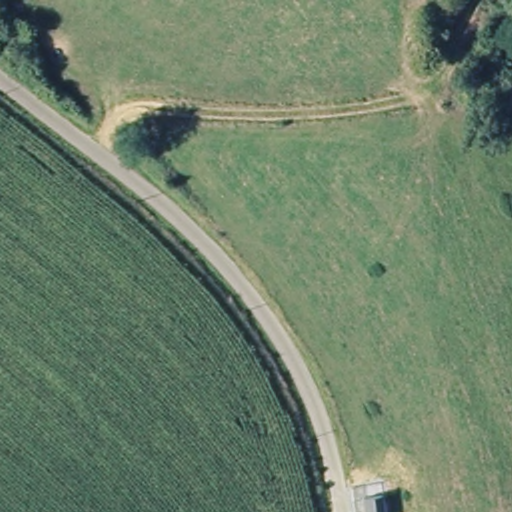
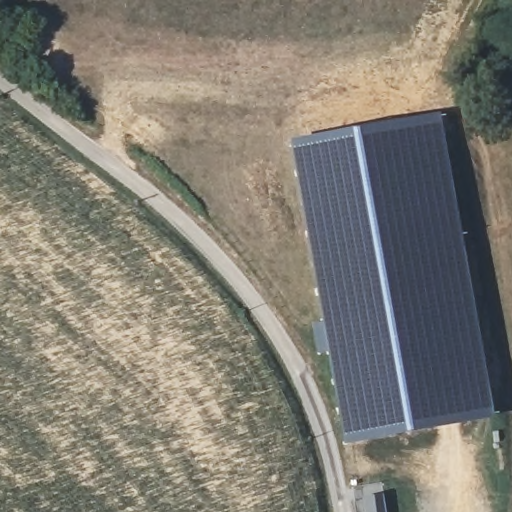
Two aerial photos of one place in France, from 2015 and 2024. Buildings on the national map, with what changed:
new [(352,127),(440,113),(480,333),(494,416),(407,433),(342,443),(325,351),(323,343),(321,322),(305,239),(290,140),(352,127)]
unchanged [(386,512),(365,512),(362,497),(382,493),(386,512)]

